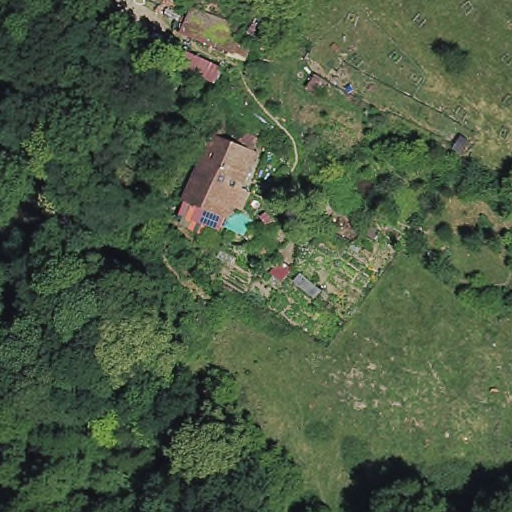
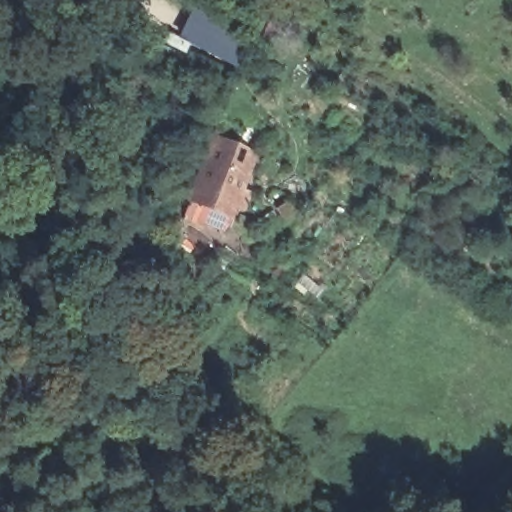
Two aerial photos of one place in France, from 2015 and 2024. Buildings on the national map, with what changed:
new [(248,36),(233,66),(178,39),(193,8),(248,36)]
unchanged [(253,161),(227,224),(188,208),(213,144),(253,161)]

